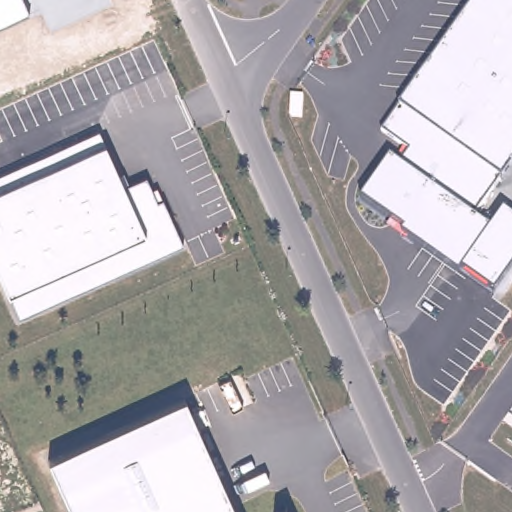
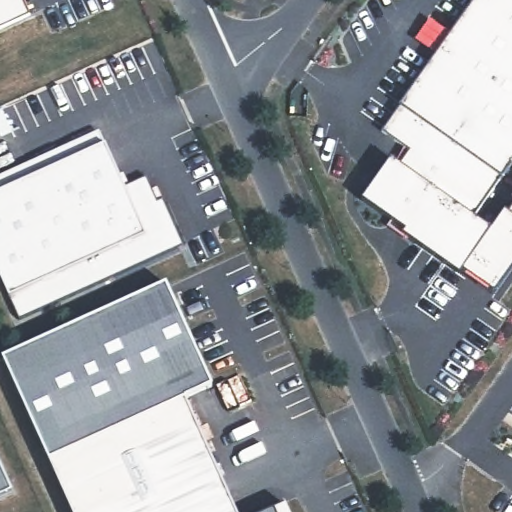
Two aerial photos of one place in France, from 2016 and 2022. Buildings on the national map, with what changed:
unchanged [(27,14),(0,27),(0,0),(21,0),(27,14)]
unchanged [(512,164),(474,219),(490,229),(458,273),(402,236),(405,230),(363,199),(392,158),(400,165),(409,152),(383,134),(478,0),(512,0),(512,164)]
unchanged [(124,189),(146,177),(151,188),(157,186),(181,247),(20,320),(0,275),(0,175),(98,130),(124,189)]
unchanged [(512,217),(512,268),(494,293),(461,269),(490,229),(503,210),(512,217)]
new [(165,283),(212,385),(184,398),(47,460),(1,357),(165,283)]
unchanged [(236,512),(70,512),(47,460),(185,397),(236,512)]
new [(19,490),(0,498),(0,445),(19,490)]
unchanged [(285,503),(289,512),(275,512),(274,509),(285,503)]

